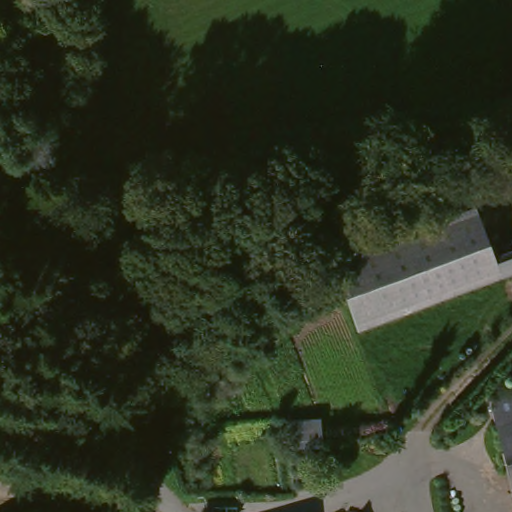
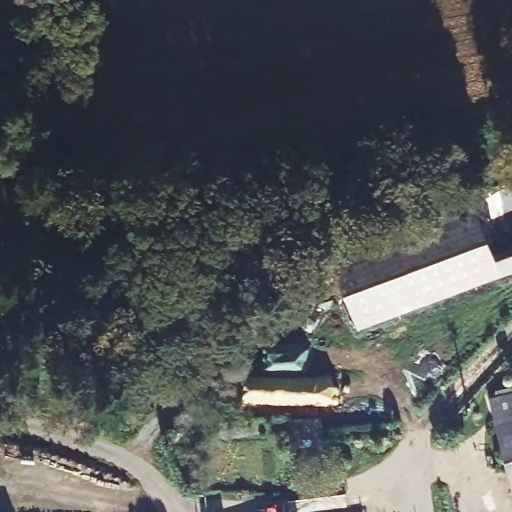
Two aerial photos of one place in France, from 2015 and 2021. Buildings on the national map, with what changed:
unchanged [(329,260),(471,207),(490,257),(512,249),(512,275),(358,332),(329,260)]
unchanged [(503,375),(512,373),(512,512),(490,432),(486,420),(482,405),(510,396),(503,375)]
unchanged [(315,418),(316,447),(282,448),(282,420),(315,418)]
unchanged [(358,512),(327,512),(357,510),(358,512)]

